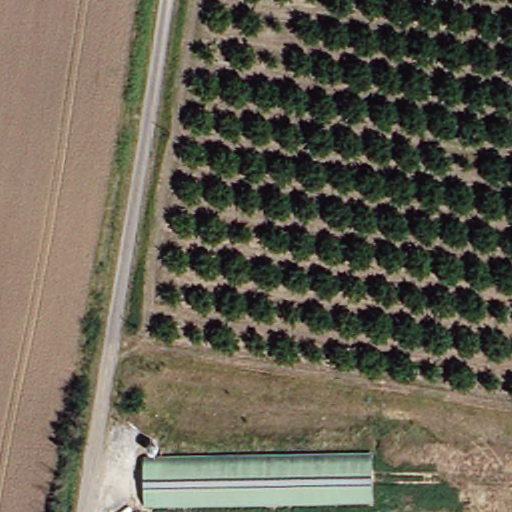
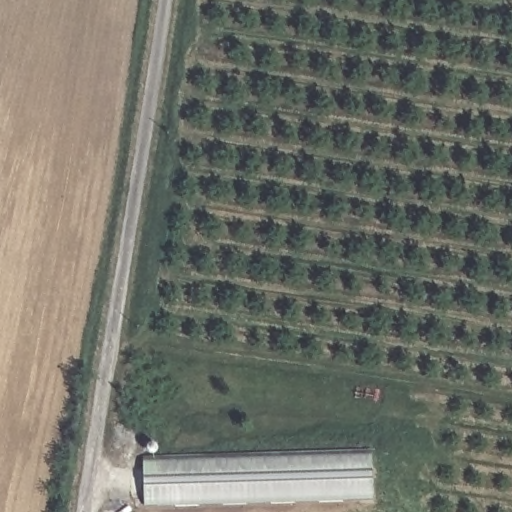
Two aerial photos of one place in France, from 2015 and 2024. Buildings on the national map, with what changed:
unchanged [(371,453),(374,498),(142,508),(140,461),(371,453)]

